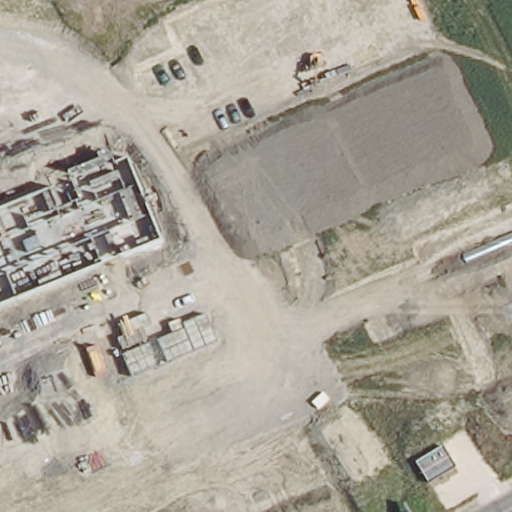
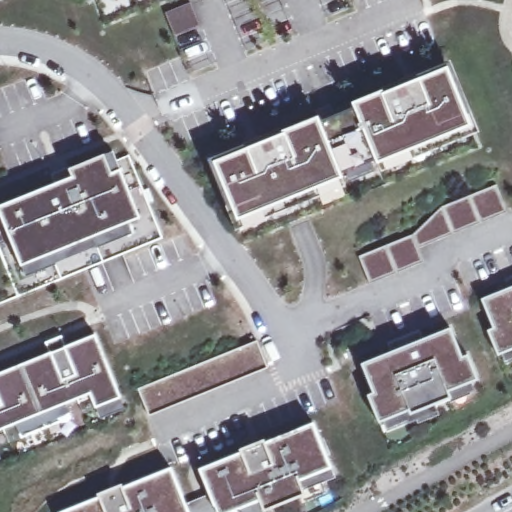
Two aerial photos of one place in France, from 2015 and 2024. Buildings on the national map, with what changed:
new [(246,147),(247,149),(284,135),(282,132),(317,118),(319,123),(355,108),(352,104),(381,92),(382,95),(418,80),(417,78),(445,66),(467,122),(375,159),(339,174),(236,216),(213,160),(246,147)]
new [(467,122),(473,120),(479,133),(381,172),(375,159),(467,122)]
unchanged [(67,168),(68,170),(112,151),(140,219),(21,267),(0,217),(0,207),(55,184),(51,175),(67,168)]
new [(236,216),(339,174),(345,187),(235,231),(230,218),(236,216)]
new [(412,235),(442,207),(496,185),(507,213),(419,249),(424,262),(370,285),(359,257),(412,235)]
new [(509,289),(505,280),(512,277),(512,351),(497,357),(487,331),(493,329),(482,300),(509,289)]
new [(391,352),(387,342),(420,330),(423,339),(451,328),(462,357),(467,355),(477,381),(471,383),(474,391),(470,393),(466,385),(449,393),(451,399),(414,414),(417,421),(408,424),(404,414),(378,423),(367,395),(372,393),(361,364),(391,352)]
unchanged [(47,344),(61,338),(65,348),(95,336),(125,409),(100,419),(95,405),(69,416),(75,430),(27,449),(21,435),(0,444),(0,374),(51,354),(47,344)]
new [(257,341),(267,368),(148,416),(138,389),(257,341)]
new [(99,498),(98,495),(121,486),(122,489),(170,469),(185,505),(210,495),(200,470),(242,453),(241,451),(263,441),(264,444),(312,425),(333,475),(323,479),(326,486),(304,495),(264,511),(263,512),(241,512),(240,508),(231,512),(65,512),(99,498)]
unchanged [(0,460),(0,457),(1,459),(0,460)]

